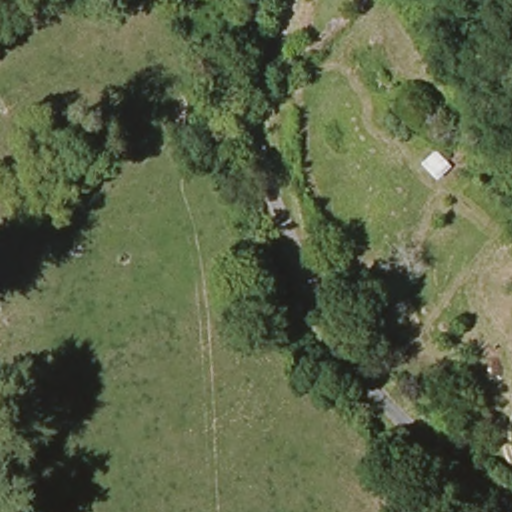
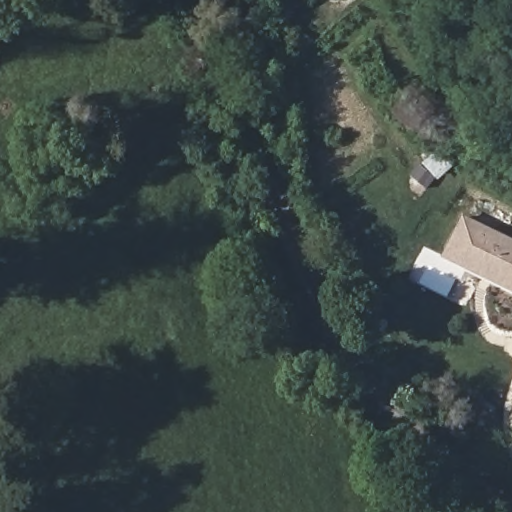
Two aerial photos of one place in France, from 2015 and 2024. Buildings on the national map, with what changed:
unchanged [(434,154),(445,167),(435,177),(423,163),(434,154)]
new [(512,240),(512,293),(441,259),(462,217),(512,240)]
unchanged [(486,402),(510,417),(501,428),(478,413),(486,402)]

